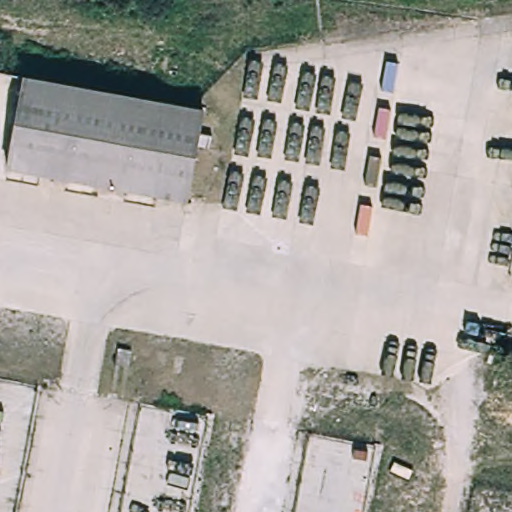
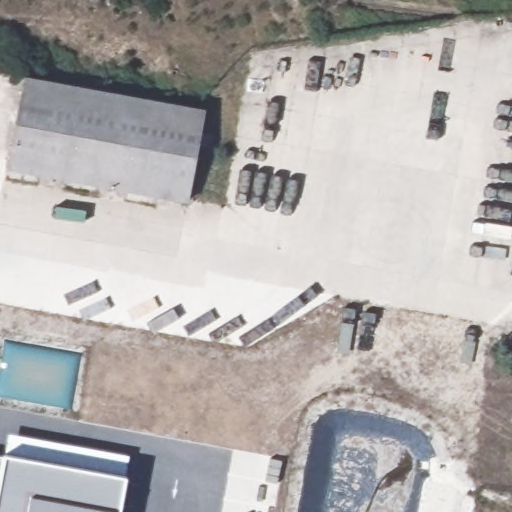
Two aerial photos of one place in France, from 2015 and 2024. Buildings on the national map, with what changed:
unchanged [(184,203),(5,169),(22,79),(202,111),(184,203)]
new [(5,456),(10,433),(130,454),(127,476),(120,512),(0,512),(0,455),(5,456)]

